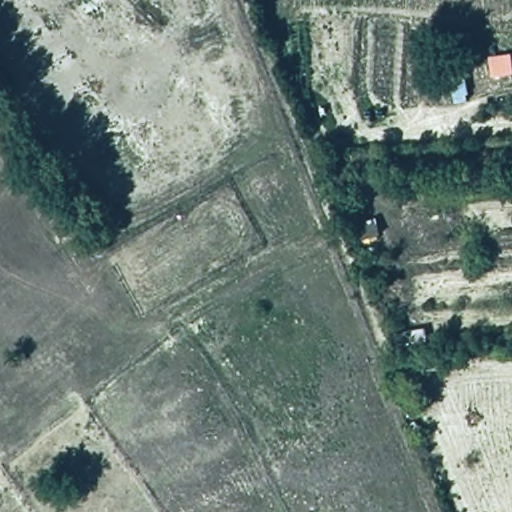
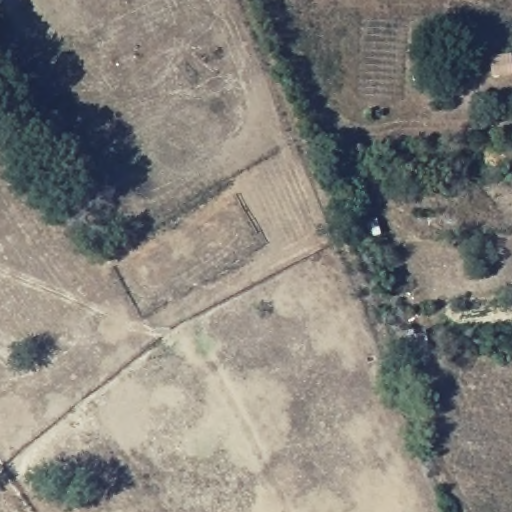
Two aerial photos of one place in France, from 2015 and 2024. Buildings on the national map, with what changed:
unchanged [(358,240),(374,236),(382,259),(367,265),(358,240)]

